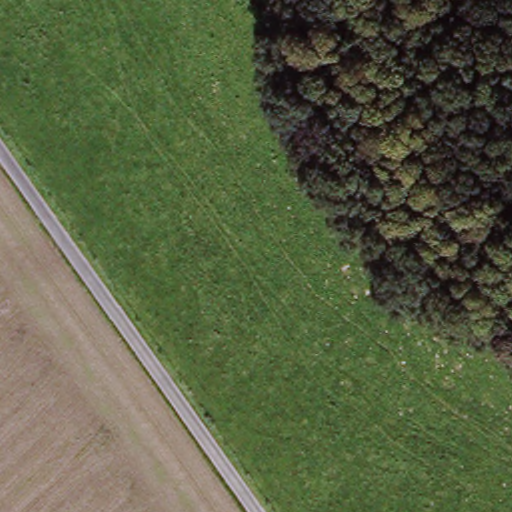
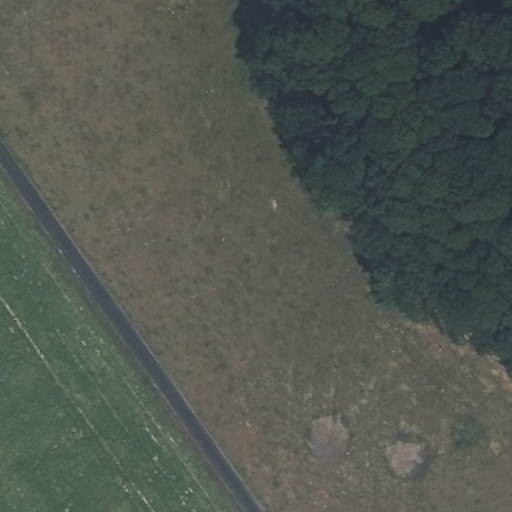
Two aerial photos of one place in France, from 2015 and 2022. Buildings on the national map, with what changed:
[]

